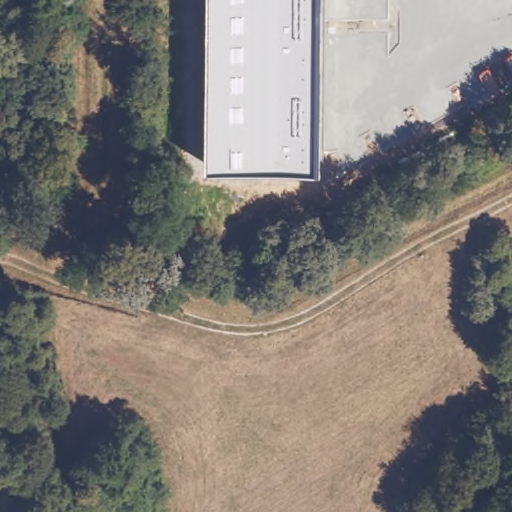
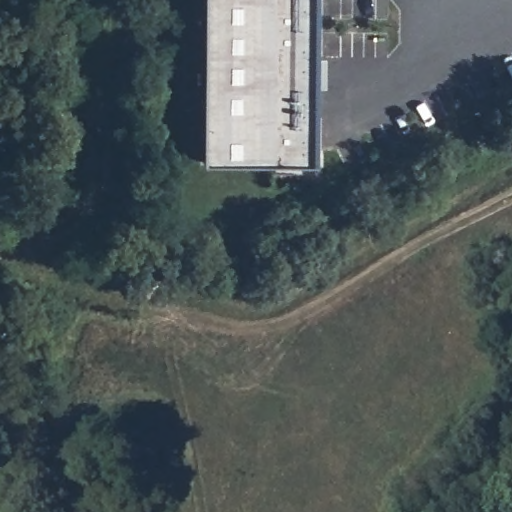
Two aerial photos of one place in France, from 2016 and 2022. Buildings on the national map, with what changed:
unchanged [(316,162),(204,159),(205,0),(317,0),(316,162)]

